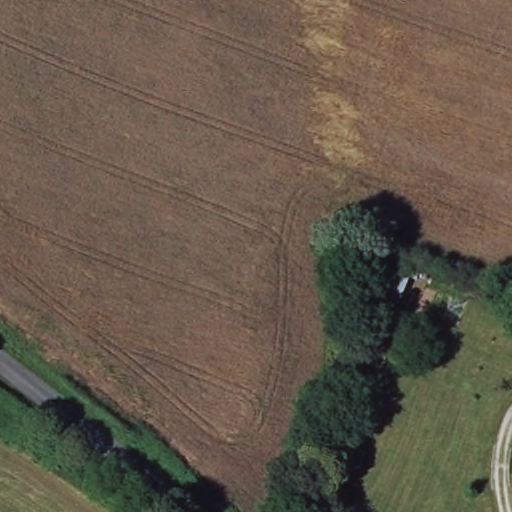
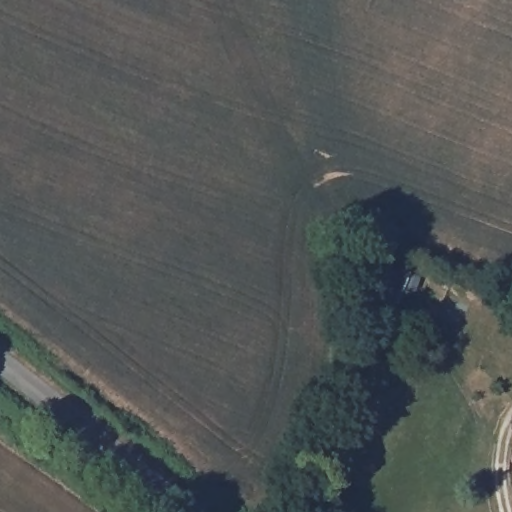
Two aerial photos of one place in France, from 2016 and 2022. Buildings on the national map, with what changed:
unchanged [(389,261),(411,271),(397,302),(375,293),(389,261)]

